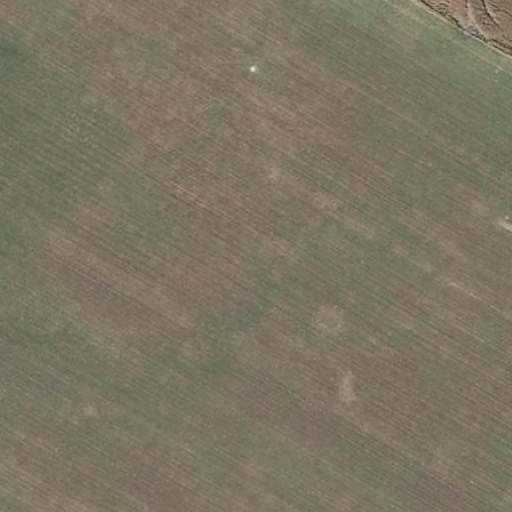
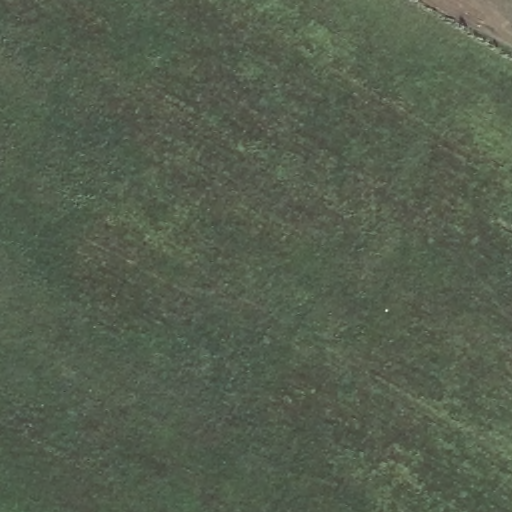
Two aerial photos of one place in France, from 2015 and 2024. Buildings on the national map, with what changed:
[]

